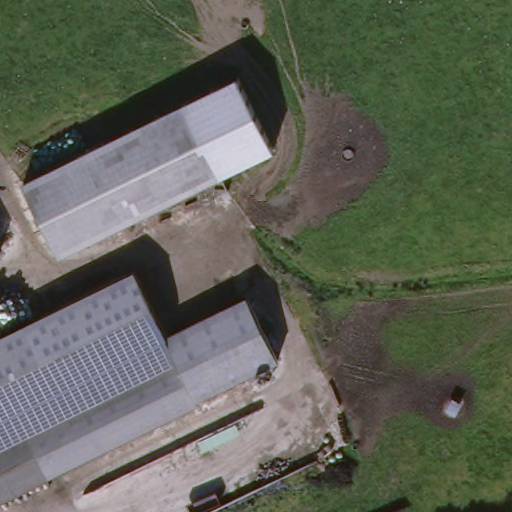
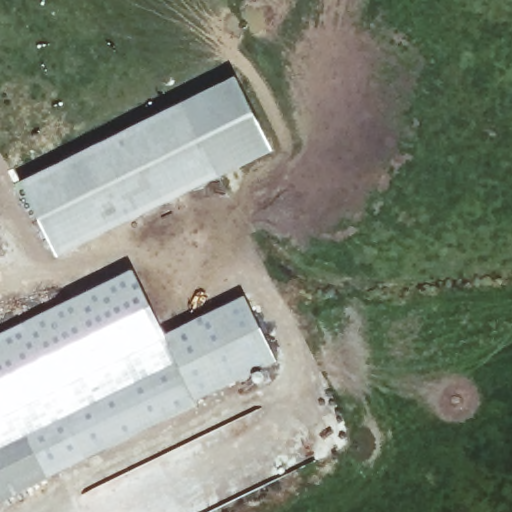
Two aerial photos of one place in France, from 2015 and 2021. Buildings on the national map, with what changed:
unchanged [(59,255),(23,183),(236,77),(273,149),(59,255)]
unchanged [(0,396),(0,334),(135,267),(169,331),(247,293),(284,362),(53,476),(31,434),(21,438),(0,449),(0,434),(16,426),(0,396)]
unchanged [(0,434),(0,396),(16,426),(0,434)]
unchanged [(0,449),(21,438),(43,487),(0,507),(0,449)]

